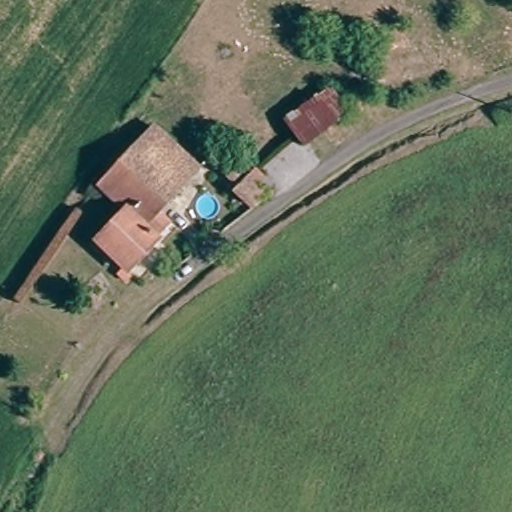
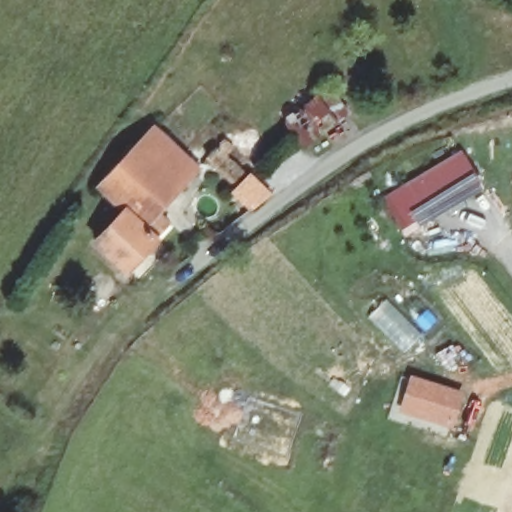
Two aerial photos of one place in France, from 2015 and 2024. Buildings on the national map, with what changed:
unchanged [(346,124),(309,151),(283,121),(323,96),(346,124)]
unchanged [(195,166),(139,225),(149,235),(122,264),(92,238),(120,209),(96,184),(152,126),(195,166)]
unchanged [(256,206),(240,189),(241,185),(211,158),(221,150),(270,196),(256,206)]
new [(430,220),(410,185),(463,153),(485,188),(430,220)]
new [(465,393),(454,428),(399,412),(411,375),(465,393)]

